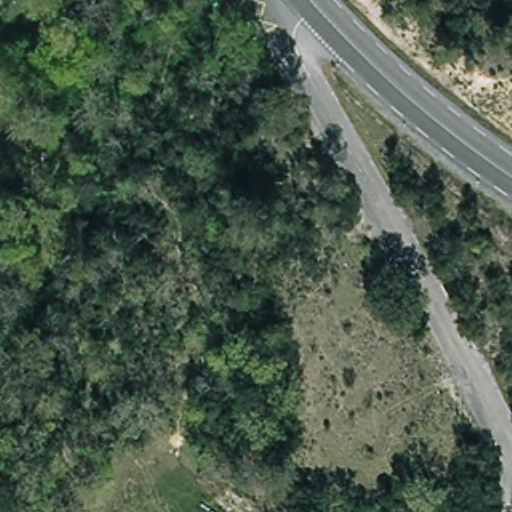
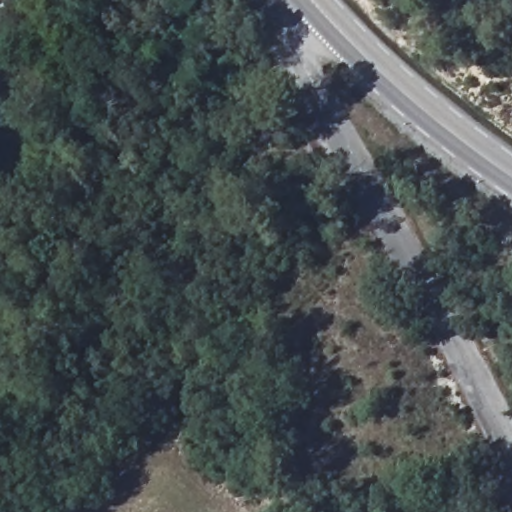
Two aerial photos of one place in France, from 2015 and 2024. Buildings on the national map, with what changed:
unchanged [(156,110),(145,119),(135,104),(145,96),(156,110)]

